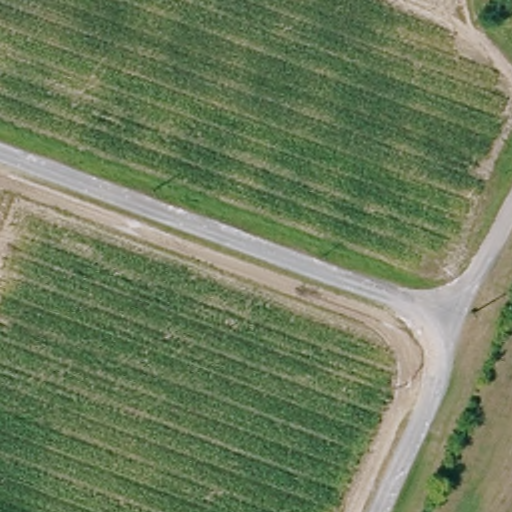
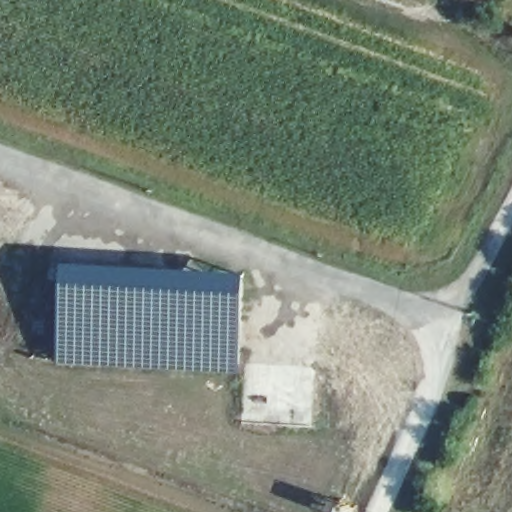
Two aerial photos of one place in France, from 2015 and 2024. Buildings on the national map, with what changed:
new [(60,260),(242,267),(238,356),(56,348),(60,260)]

